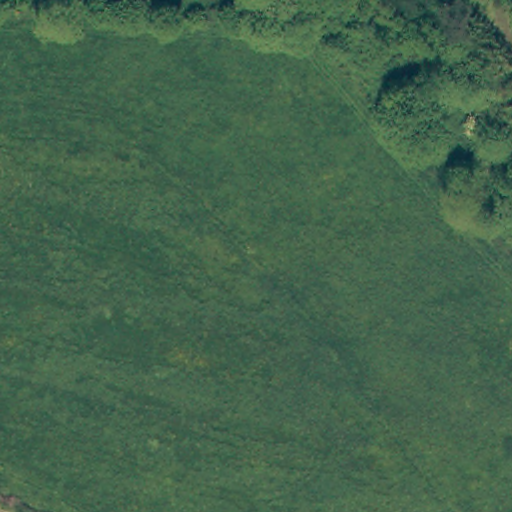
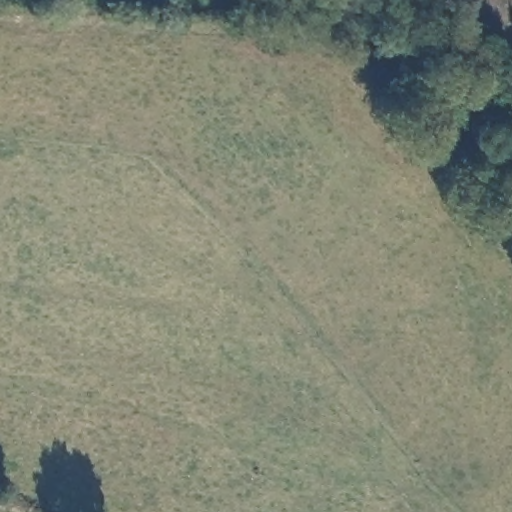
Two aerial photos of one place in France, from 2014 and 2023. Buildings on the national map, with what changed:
[]

